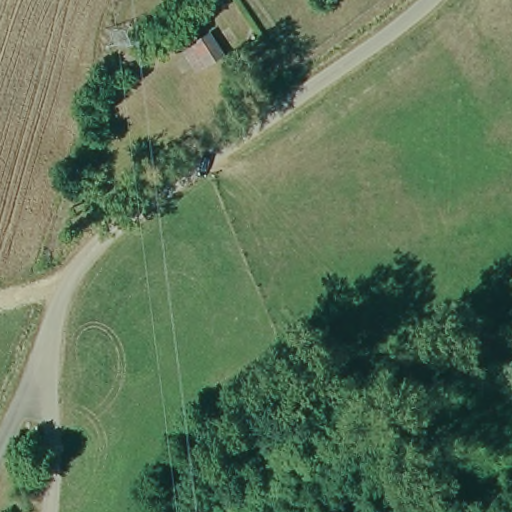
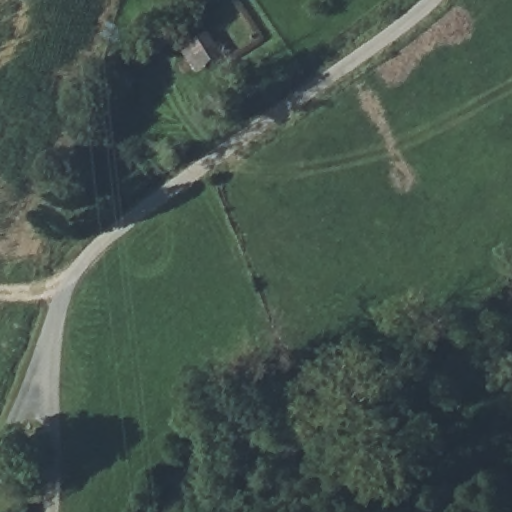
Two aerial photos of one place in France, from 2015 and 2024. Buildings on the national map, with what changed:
unchanged [(178,46),(205,32),(220,54),(195,74),(178,46)]

